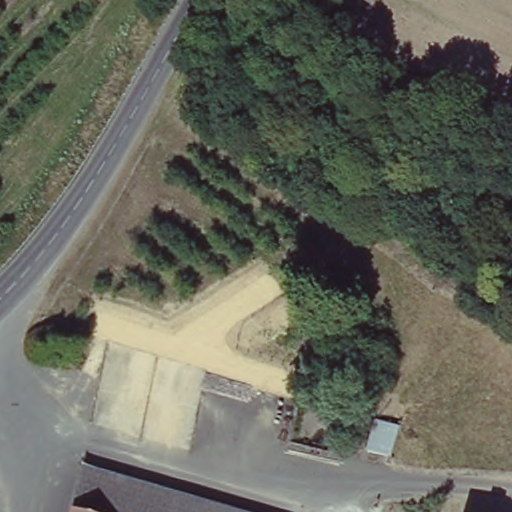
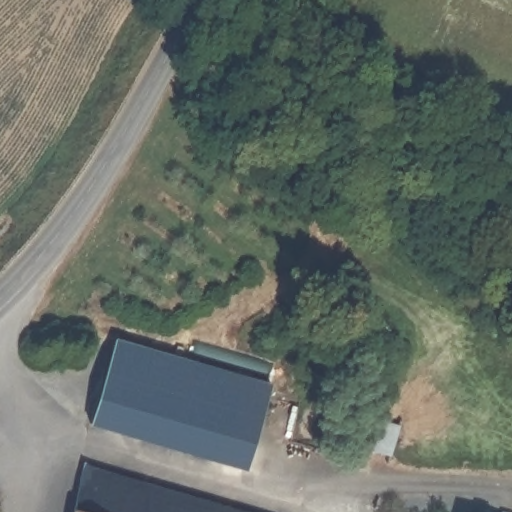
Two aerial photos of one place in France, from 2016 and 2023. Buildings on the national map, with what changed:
new [(122,338),(277,383),(249,466),(97,420),(122,338)]
new [(391,458),(366,452),(374,420),(400,426),(391,458)]
unchanged [(83,460),(179,487),(231,503),(265,512),(96,512),(70,506),(83,460)]
unchanged [(96,512),(69,512),(70,506),(96,512)]

